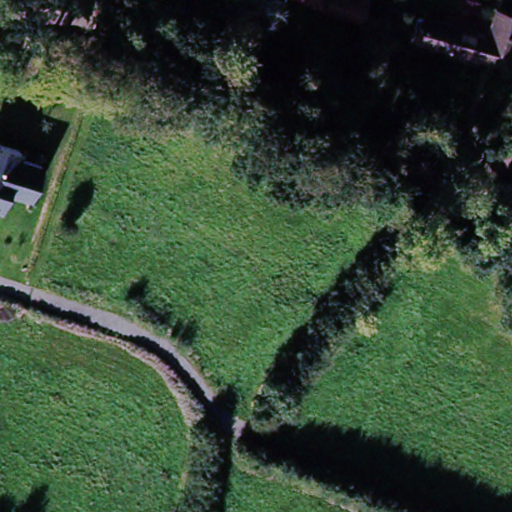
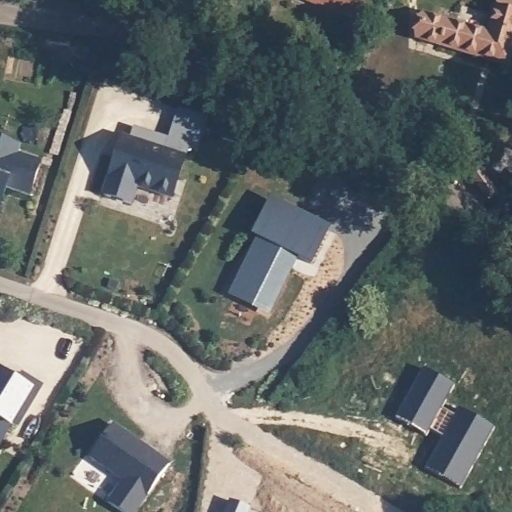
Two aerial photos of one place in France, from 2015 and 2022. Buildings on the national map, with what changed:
unchanged [(365,12),(358,30),(287,1),(287,0),(368,0),(363,11),(365,12)]
unchanged [(505,71),(415,44),(423,20),(485,37),(492,11),(492,8),(493,4),(495,0),(498,0),(512,4),(507,16),(512,18),(512,45),(505,71)]
new [(209,120),(198,155),(188,152),(173,203),(140,191),(132,209),(100,197),(122,137),(130,140),(135,129),(168,139),(177,113),(209,120)]
unchanged [(20,160),(41,166),(30,201),(7,194),(1,212),(0,211),(0,143),(23,150),(20,160)]
new [(331,229),(313,268),(298,262),(269,320),(227,299),(258,241),(252,237),(272,200),(331,229)]
new [(19,429),(13,426),(0,447),(0,367),(8,372),(7,376),(18,383),(23,375),(44,387),(19,429)]
new [(89,459),(115,425),(172,466),(139,512),(118,512),(109,501),(122,483),(89,459)]

